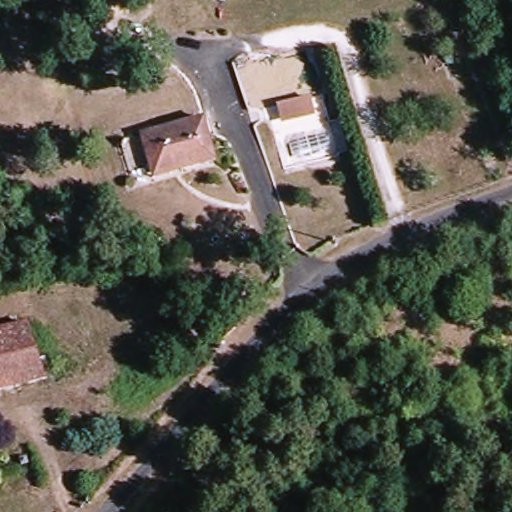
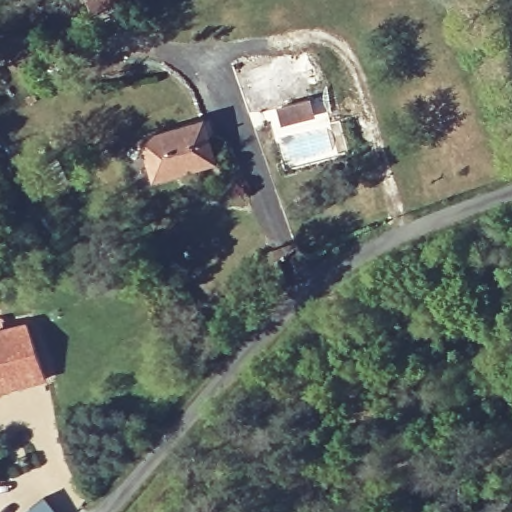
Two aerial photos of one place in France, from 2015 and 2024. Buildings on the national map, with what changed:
unchanged [(311,96),(316,117),(281,125),(277,105),(311,96)]
unchanged [(148,184),(137,143),(203,124),(215,168),(148,184)]
unchanged [(38,382),(0,391),(0,336),(24,329),(38,382)]
new [(43,500),(52,512),(28,512),(43,500)]

